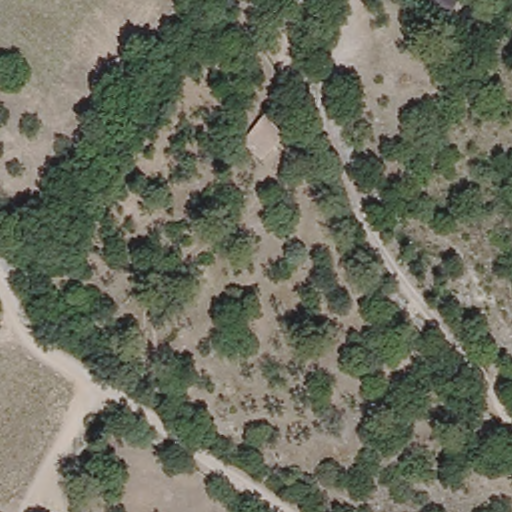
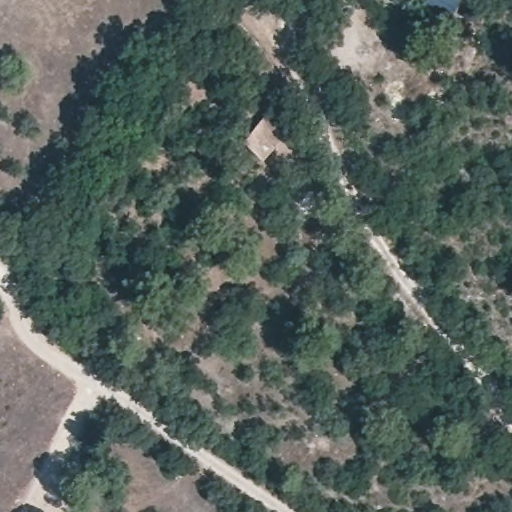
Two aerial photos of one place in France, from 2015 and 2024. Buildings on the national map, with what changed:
unchanged [(284,135),(263,160),(243,141),(266,116),(284,135)]

